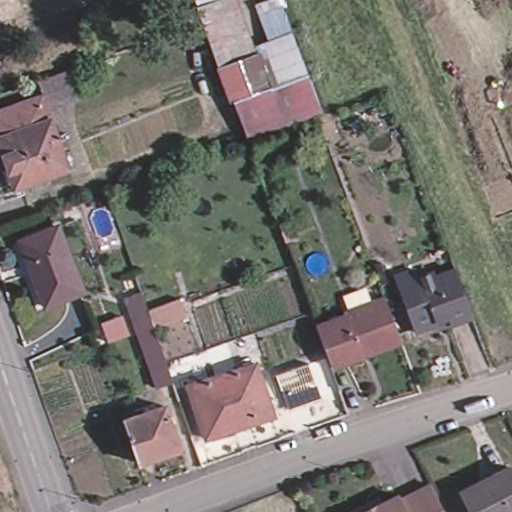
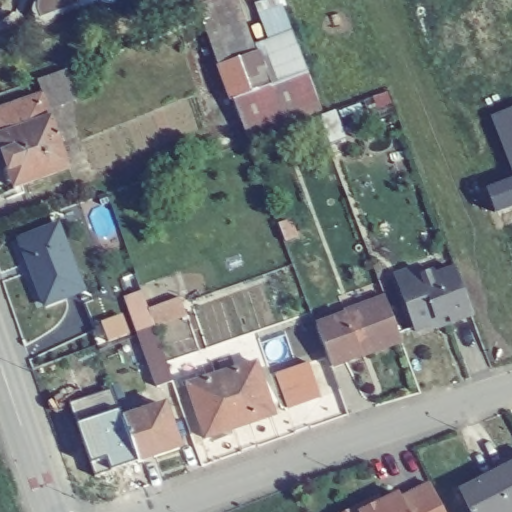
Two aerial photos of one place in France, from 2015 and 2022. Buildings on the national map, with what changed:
unchanged [(212,0),(237,0),(260,64),(275,59),(254,3),(262,0),(281,0),(308,70),(303,73),(230,100),(202,24),(196,8),(212,2),(212,0)]
unchanged [(230,100),(303,73),(318,111),(245,139),(244,139),(230,100)]
unchanged [(77,106),(47,116),(42,99),(37,84),(67,74),(77,106)]
unchanged [(47,116),(50,123),(0,138),(0,114),(42,99),(47,116)]
new [(512,113),(512,167),(495,119),(512,113)]
unchanged [(65,172),(14,188),(0,143),(0,138),(50,123),(65,172)]
new [(500,215),(491,193),(512,185),(512,211),(500,215)]
unchanged [(282,227),(291,223),(297,238),(287,242),(282,227)]
unchanged [(59,224),(83,290),(45,304),(20,239),(59,224)]
unchanged [(141,330),(135,315),(121,275),(137,269),(151,309),(182,297),(189,314),(157,325),(176,382),(160,388),(141,330)]
unchanged [(437,326),(417,335),(400,289),(395,277),(416,269),(421,281),(435,275),(437,279),(458,270),(475,316),(456,324),(440,330),(437,326)]
unchanged [(404,343),(365,358),(335,369),(327,348),(318,324),(376,300),(387,295),(392,309),(401,336),(403,340),(404,343)]
unchanged [(190,384),(259,362),(277,414),(207,437),(190,384)]
unchanged [(311,362),(323,396),(290,408),(278,374),(311,362)]
new [(95,474),(70,403),(112,389),(125,422),(138,459),(95,474)]
unchanged [(183,449),(140,464),(125,422),(168,405),(183,449)]
unchanged [(512,470),(512,512),(473,512),(464,494),(512,470)]
unchanged [(432,486),(445,512),(406,512),(400,502),(432,486)]
unchanged [(378,499),(381,504),(398,497),(400,502),(406,512),(352,512),(355,510),(378,499)]

